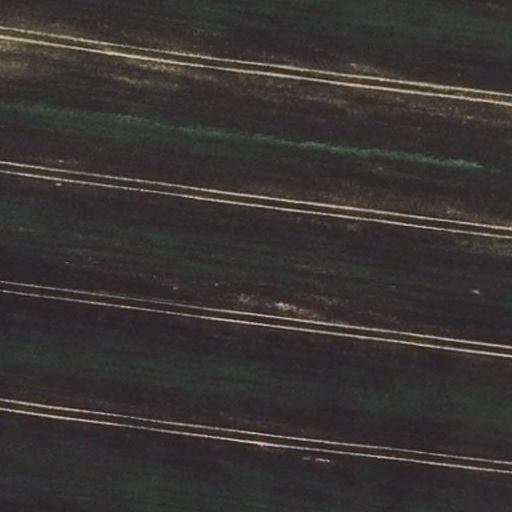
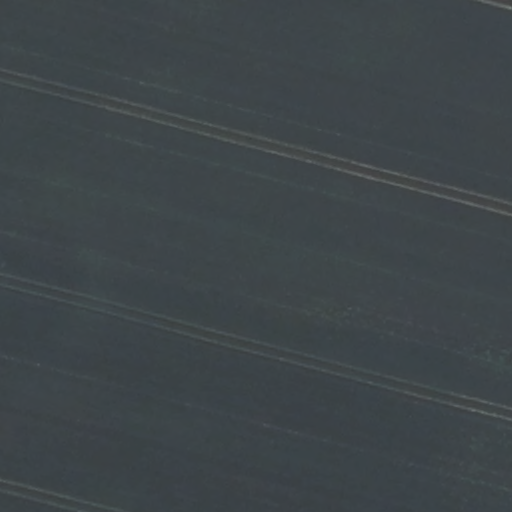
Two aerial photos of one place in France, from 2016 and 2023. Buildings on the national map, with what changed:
[]

